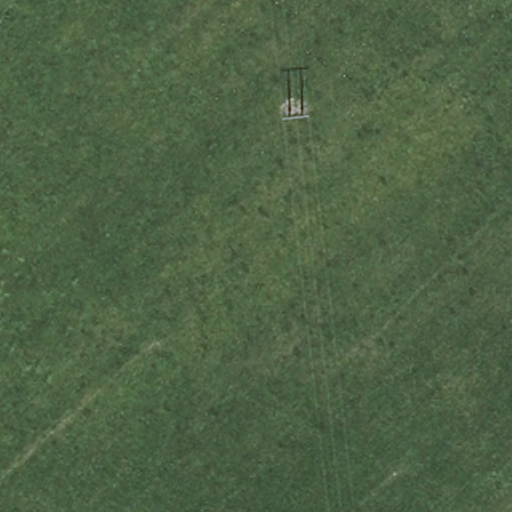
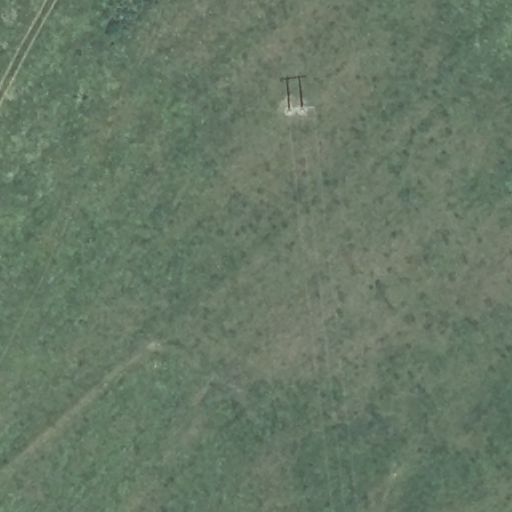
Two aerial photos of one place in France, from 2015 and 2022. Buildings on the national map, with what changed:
[]

